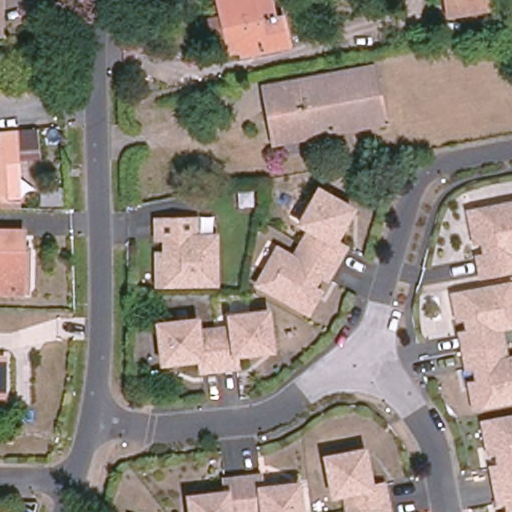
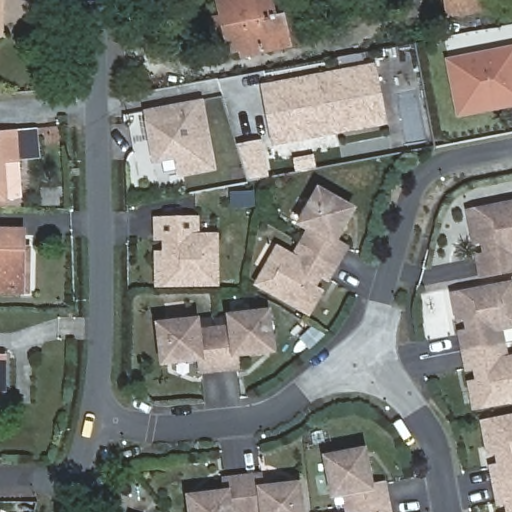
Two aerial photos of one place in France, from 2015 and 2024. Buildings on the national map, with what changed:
unchanged [(2,0),(2,17),(0,17),(0,0),(2,0)]
unchanged [(222,16),(218,0),(271,0),(275,18),(283,16),(289,45),(242,55),(240,49),(229,51),(226,35),(214,38),(211,19),(222,16)]
unchanged [(448,15),(446,0),(491,0),(492,8),(448,15)]
demolished [(501,26),(512,24),(512,55),(507,56),(501,26)]
new [(446,57),(512,44),(512,106),(457,118),(446,57)]
unchanged [(381,119),(276,139),(267,89),(372,69),(381,119)]
new [(175,159),(154,162),(144,111),(203,98),(217,170),(179,177),(175,159)]
unchanged [(0,198),(0,140),(0,131),(16,129),(38,127),(41,158),(18,160),(21,196),(0,198)]
unchanged [(66,202),(42,201),(42,186),(66,186),(66,202)]
unchanged [(350,245),(341,261),(306,243),(314,227),(304,222),(322,188),(348,202),(356,206),(351,215),(338,239),(350,245)]
unchanged [(512,215),(512,275),(486,280),(481,256),(488,255),(486,239),(477,241),(477,235),(473,217),(511,210),(512,215)]
unchanged [(170,253),(171,237),(162,237),(162,219),(202,219),(202,236),(207,236),(207,244),(212,249),(220,249),(220,283),(162,283),(162,259),(162,253),(170,253)]
unchanged [(28,291),(22,291),(0,291),(0,230),(22,230),(22,247),(12,247),(12,257),(29,258),(28,291)]
unchanged [(311,317),(260,290),(276,260),(282,264),(289,262),(293,255),(298,258),(306,243),(341,261),(332,276),(326,273),(318,287),(325,290),(322,296),(311,317)]
unchanged [(512,292),(512,311),(507,311),(503,317),(505,325),(499,326),(502,343),(464,350),(461,334),(468,333),(466,317),(458,318),(457,312),(453,295),(511,284),(512,292)]
unchanged [(261,350),(235,353),(237,365),(219,368),(214,334),(214,329),(231,326),(229,315),(267,310),(271,340),(272,348),(261,350)]
unchanged [(162,354),(157,324),(196,319),(197,331),(214,329),(214,334),(219,368),(201,370),(200,358),(174,361),(162,362),(162,354)]
unchanged [(475,366),(467,368),(464,350),(502,343),(506,359),(512,358),(512,362),(512,400),(475,406),(471,389),(470,383),(478,382),(475,366)]
unchanged [(4,395),(0,395),(0,357),(4,357),(4,395)]
unchanged [(483,427),(512,421),(512,487),(496,490),(492,472),(500,471),(497,455),(489,456),(488,451),(483,427)]
unchanged [(333,494),(327,456),(357,451),(365,449),(367,460),(372,486),(383,484),(387,501),(374,503),(348,508),(345,492),(333,494)]
unchanged [(244,488),(242,477),(261,475),(262,488),(288,485),(299,483),(300,491),(302,512),(247,512),(244,488)]
unchanged [(247,512),(191,512),(190,504),(189,496),(200,495),(227,492),(225,479),(242,477),(244,488),(247,512)]
unchanged [(507,506),(499,507),(496,490),(512,487),(512,512),(508,512),(507,506)]
unchanged [(348,508),(374,503),(387,501),(389,512),(349,512),(348,508)]

